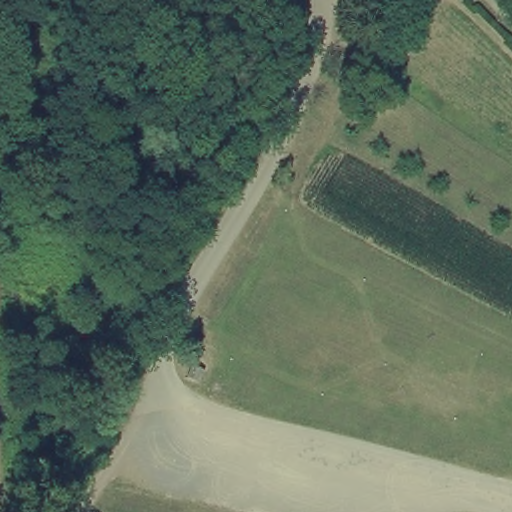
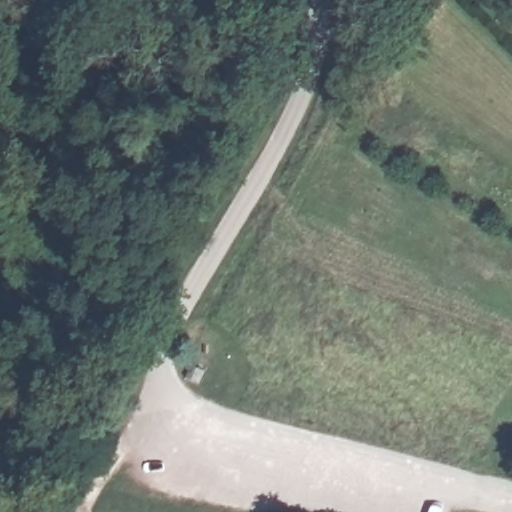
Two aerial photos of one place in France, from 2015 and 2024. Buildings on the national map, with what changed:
unchanged [(192,364),(205,370),(201,383),(187,377),(192,364)]

